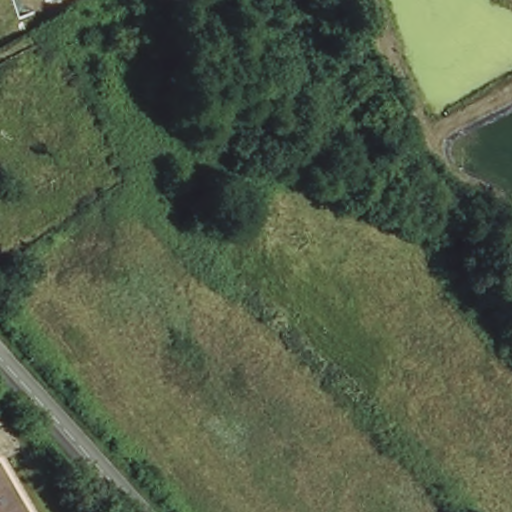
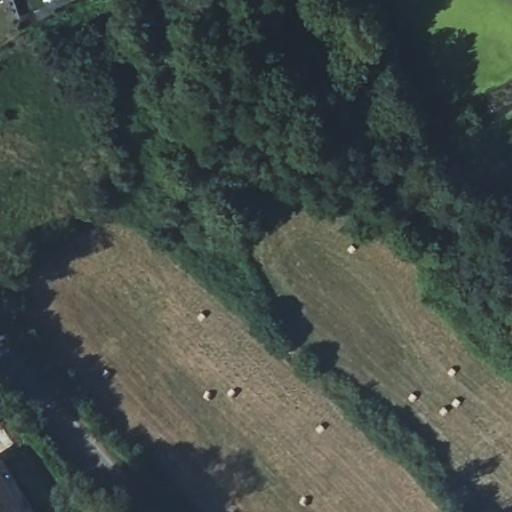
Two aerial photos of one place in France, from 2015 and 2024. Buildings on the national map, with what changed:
unchanged [(0,473),(27,512),(0,512),(0,473)]

